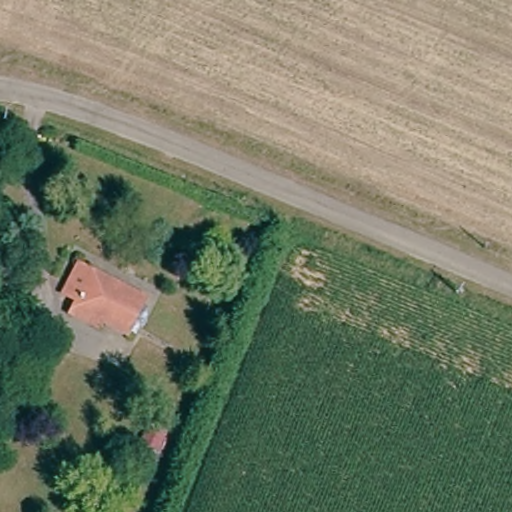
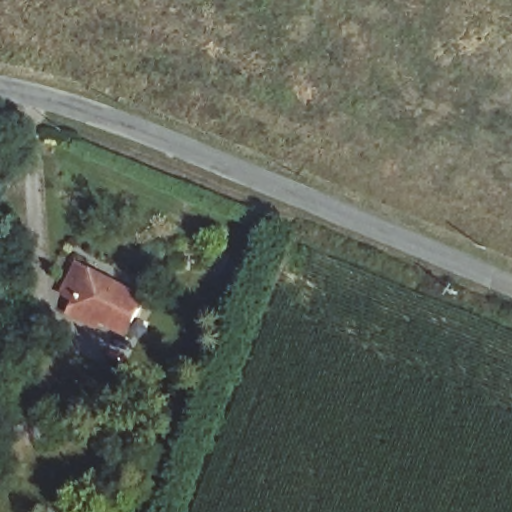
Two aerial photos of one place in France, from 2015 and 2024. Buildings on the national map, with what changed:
unchanged [(69,312),(76,304),(82,296),(67,287),(87,261),(148,308),(123,343),(99,323),(92,331),(69,312)]

